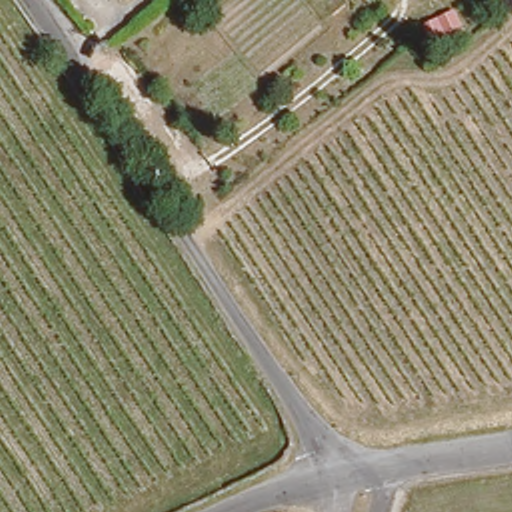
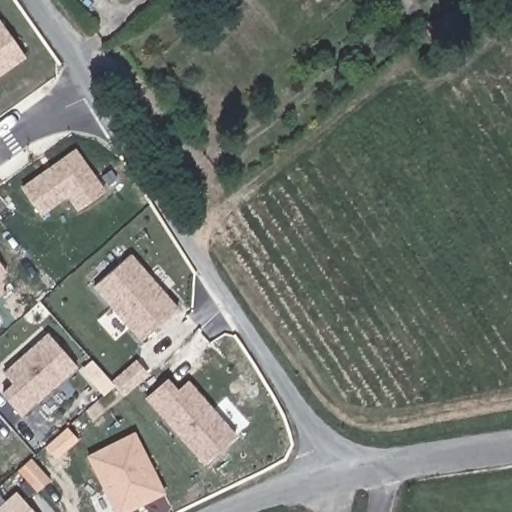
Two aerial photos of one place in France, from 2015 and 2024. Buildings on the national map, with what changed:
unchanged [(451,0),(454,0),(452,1),(451,0)]
new [(0,74),(0,22),(24,57),(0,74)]
new [(104,191),(77,210),(68,196),(41,215),(22,189),(75,151),(104,191)]
new [(176,310),(141,341),(94,286),(129,256),(176,310)]
new [(0,276),(0,264),(6,272),(0,276)]
new [(76,366),(21,416),(3,395),(15,385),(5,374),(21,360),(23,362),(27,358),(25,356),(49,335),(76,366)]
new [(204,464),(147,399),(167,381),(177,393),(188,383),(206,402),(212,410),(236,436),(204,464)]
new [(128,512),(116,512),(89,457),(135,435),(164,493),(144,503),(136,508),(128,512)]
new [(34,512),(0,512),(0,507),(16,492),(34,512)]

